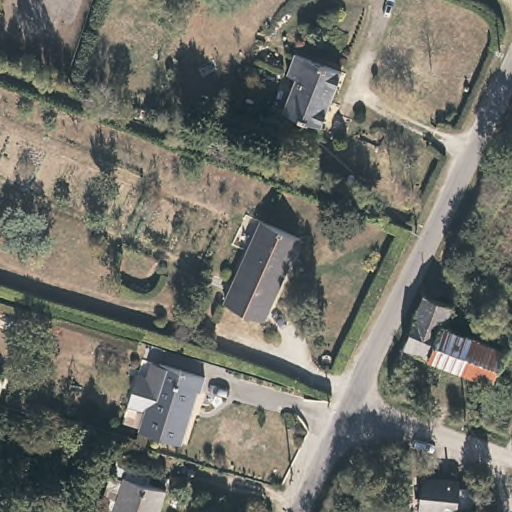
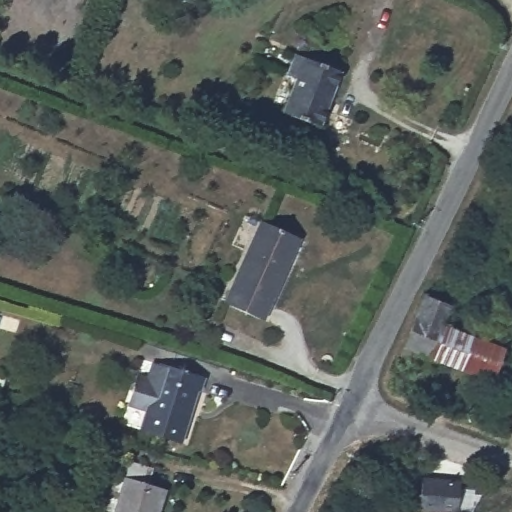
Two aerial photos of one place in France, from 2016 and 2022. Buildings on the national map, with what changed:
unchanged [(349,75),(327,130),(287,116),(301,81),(291,77),(299,56),(349,75)]
unchanged [(296,239),(262,320),(221,304),(257,222),(296,239)]
unchanged [(461,307),(453,329),(510,349),(497,381),(423,352),(418,364),(402,358),(430,293),(461,307)]
unchanged [(210,377),(206,394),(201,393),(185,447),(148,436),(154,415),(136,409),(145,380),(156,383),(161,366),(168,368),(169,366),(210,377)]
unchanged [(458,512),(419,512),(421,478),(459,478),(458,512)]
unchanged [(154,512),(112,512),(122,479),(161,490),(154,512)]
unchanged [(1,512),(0,512),(0,510),(1,510),(1,512)]

